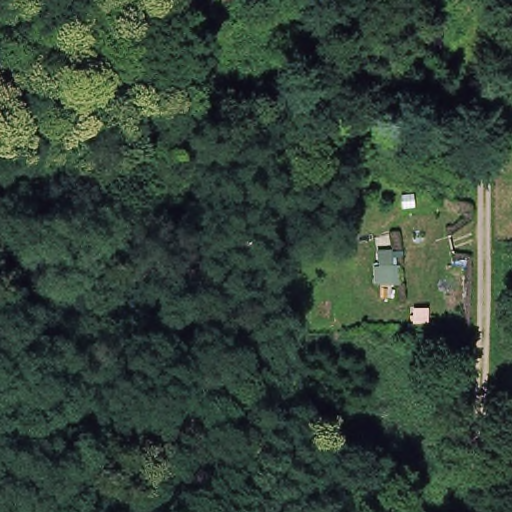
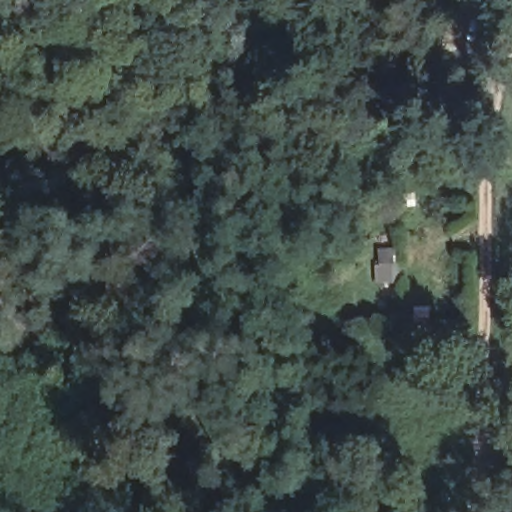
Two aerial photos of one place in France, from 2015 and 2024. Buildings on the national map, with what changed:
unchanged [(378,291),(376,270),(405,266),(405,289),(378,291)]

